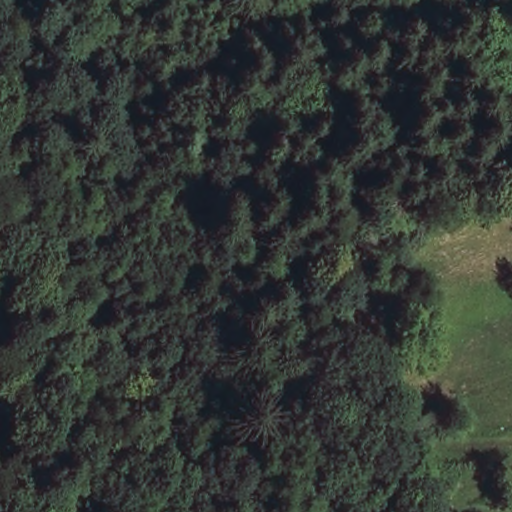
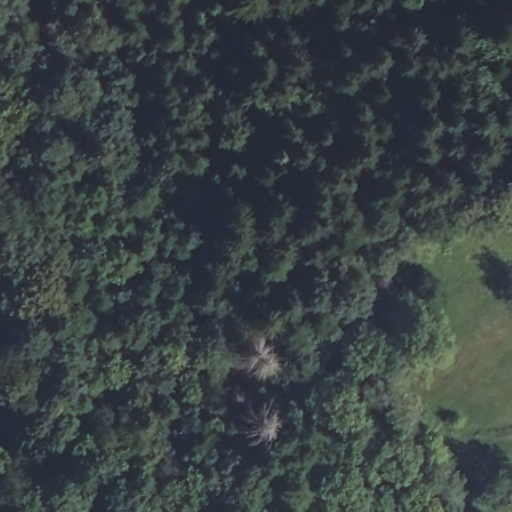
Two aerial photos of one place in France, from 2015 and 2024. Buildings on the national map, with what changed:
[]

